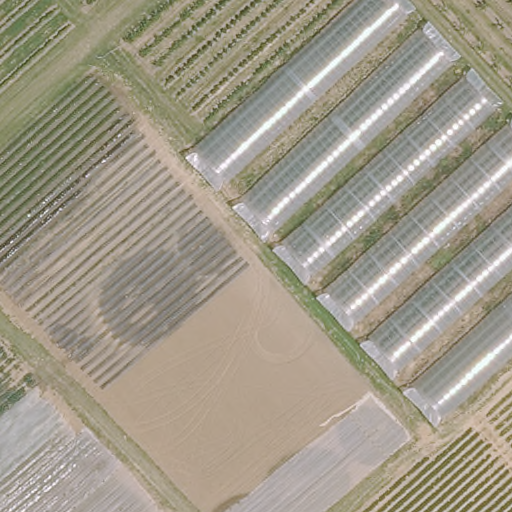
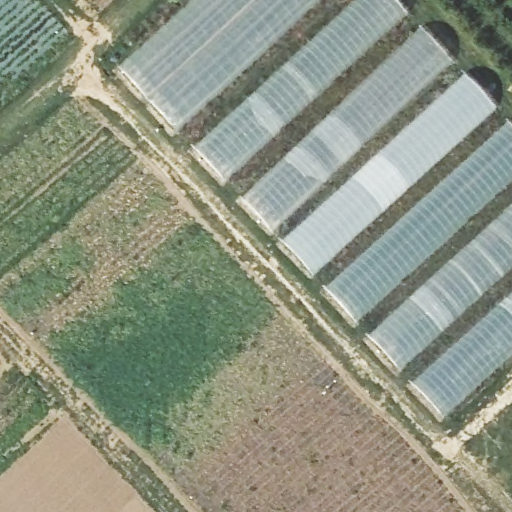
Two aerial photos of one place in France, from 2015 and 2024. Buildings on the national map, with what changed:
new [(117,74),(197,0),(322,0),(173,134),(117,74)]
unchanged [(213,189),(187,157),(360,0),(407,0),(415,8),(213,189)]
unchanged [(457,55),(260,239),(231,210),(430,24),(457,55)]
unchanged [(501,101),(302,284),(272,253),(471,69),(501,101)]
unchanged [(346,332),(317,300),(512,121),(512,180),(346,332)]
unchanged [(390,379),(359,349),(512,209),(512,267),(390,379)]
unchanged [(435,427),(404,393),(512,294),(512,357),(435,427)]

